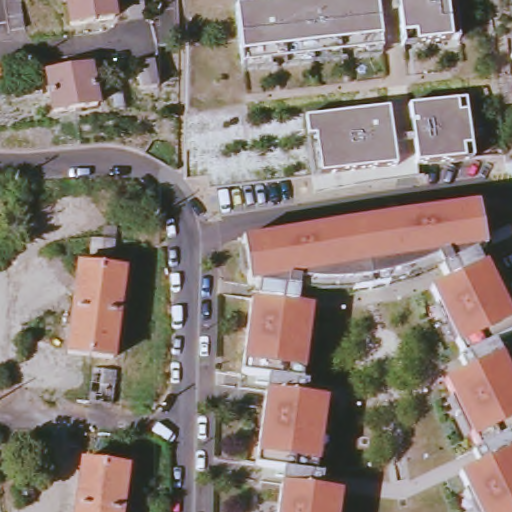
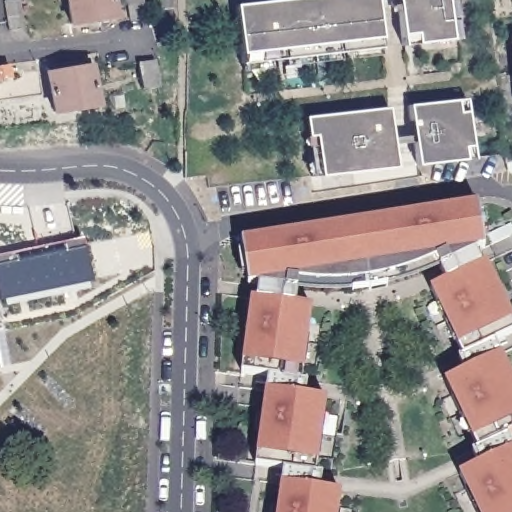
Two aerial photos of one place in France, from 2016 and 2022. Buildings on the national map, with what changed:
unchanged [(6,32),(2,2),(15,0),(19,0),(24,29),(6,32)]
unchanged [(114,19),(92,23),(70,26),(67,0),(110,0),(114,19)]
unchanged [(125,0),(142,0),(146,18),(129,22),(125,0)]
unchanged [(386,53),(246,69),(239,11),(269,7),(281,6),(333,0),(380,0),(386,53)]
unchanged [(396,0),(453,0),(457,39),(401,46),(396,0)]
unchanged [(46,69),(68,64),(88,61),(89,68),(96,108),(76,112),(55,114),(47,75),(46,69)]
unchanged [(142,90),(137,64),(153,62),(158,87),(142,90)]
unchanged [(0,67),(6,67),(6,81),(0,81),(0,67)]
unchanged [(393,108),(413,106),(469,99),(476,160),(420,166),(399,168),(316,178),(309,118),(393,108)]
unchanged [(512,318),(512,336),(496,344),(502,357),(467,374),(461,361),(464,359),(457,344),(463,342),(444,304),(439,307),(431,291),(447,284),(441,271),(437,263),(431,265),(425,267),(421,269),(415,271),(408,273),(402,275),(394,277),(387,278),(386,271),(369,274),(362,227),(443,215),(481,209),(486,251),(478,252),(478,254),(476,255),(482,267),(487,265),(512,318)]
unchanged [(254,302),(259,303),(261,289),(259,289),(259,288),(251,289),(244,245),(362,227),(369,274),(352,277),(354,284),(340,286),(339,286),(334,286),(328,286),(323,286),(319,286),(312,286),(304,285),(301,285),(300,294),(298,308),(315,310),(313,327),(306,326),(301,368),(307,368),(305,385),(271,381),(244,377),(254,302)]
new [(0,254),(80,237),(83,246),(90,281),(0,299),(0,254)]
demolished [(78,265),(102,268),(96,313),(73,311),(78,265)]
demolished [(96,313),(102,268),(124,271),(118,316),(96,313)]
demolished [(96,313),(90,358),(66,356),(73,311),(96,313)]
demolished [(113,361),(90,358),(96,313),(118,316),(113,361)]
unchanged [(512,377),(512,437),(510,438),(512,442),(512,452),(481,467),(475,455),(480,452),(473,437),(478,434),(459,396),(454,399),(446,383),(467,374),(502,357),(512,377)]
demolished [(110,407),(88,404),(93,372),(115,376),(110,407)]
unchanged [(305,385),(310,386),(308,400),(330,403),(328,419),(322,418),(316,460),(323,461),(320,478),(326,478),(324,493),(285,488),(287,473),(259,470),(269,395),(271,381),(305,385)]
unchanged [(486,512),(474,489),(469,492),(462,476),(481,467),(512,452),(512,512),(486,512)]
demolished [(81,464),(105,466),(127,470),(121,512),(75,512),(75,509),(81,464)]
unchanged [(343,512),(339,512),(336,512),(282,512),(285,488),(324,493),(344,496),(343,512)]

